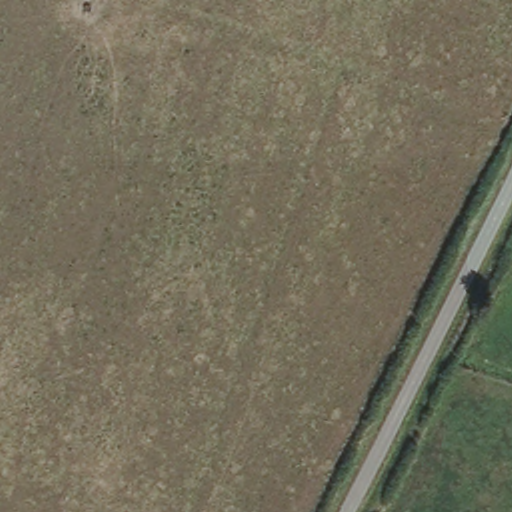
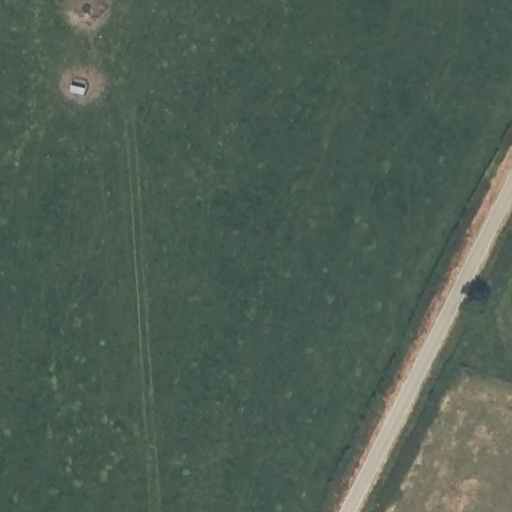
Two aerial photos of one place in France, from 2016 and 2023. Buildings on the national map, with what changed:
[]

